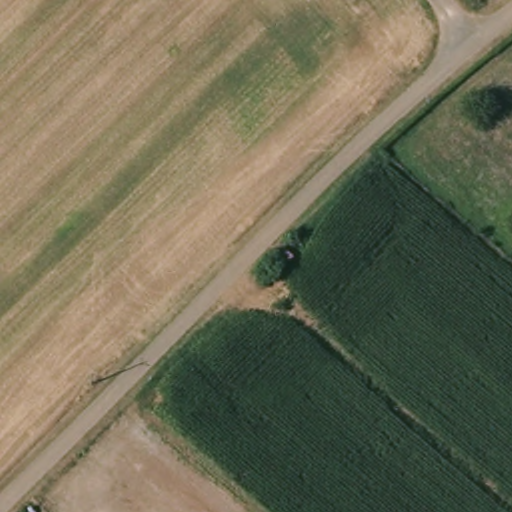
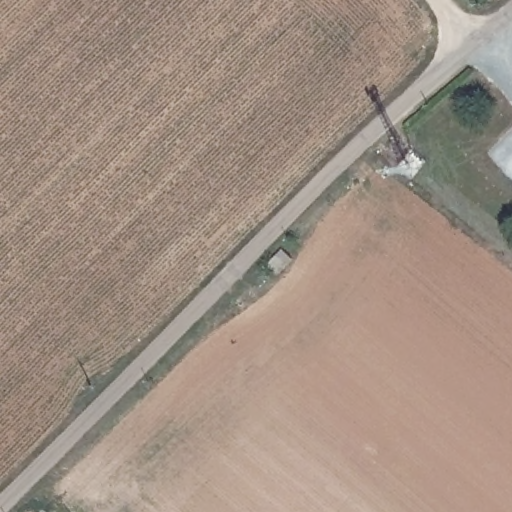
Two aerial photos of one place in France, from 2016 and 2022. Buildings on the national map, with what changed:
[]

